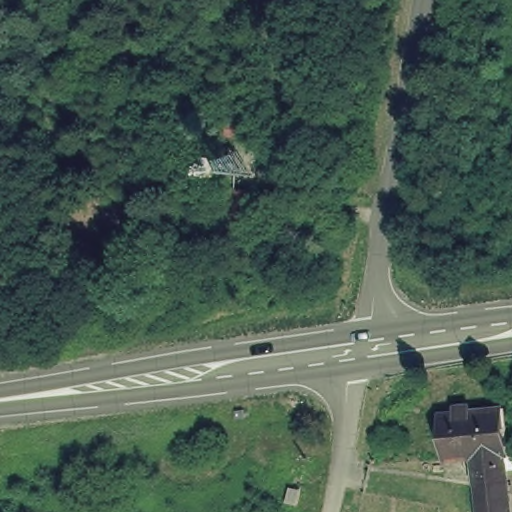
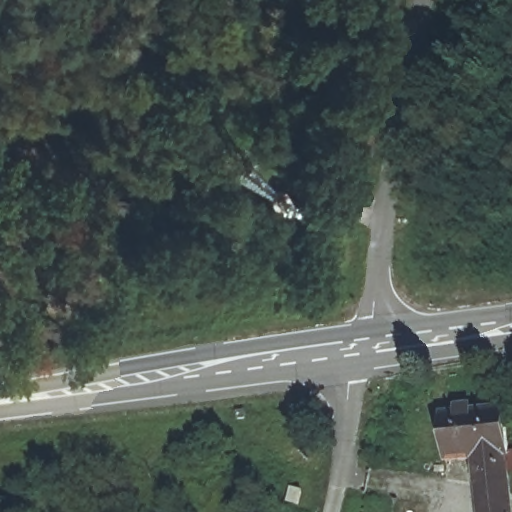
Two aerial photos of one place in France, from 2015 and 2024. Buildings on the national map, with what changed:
unchanged [(249,219),(219,221),(218,190),(247,188),(249,219)]
unchanged [(504,405),(512,483),(512,512),(477,512),(472,457),(444,459),(440,412),(504,405)]

